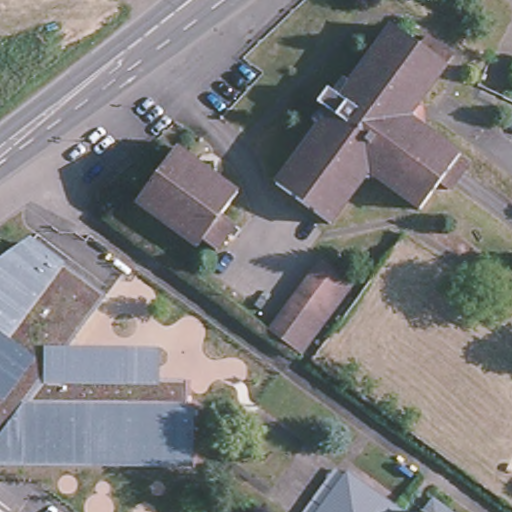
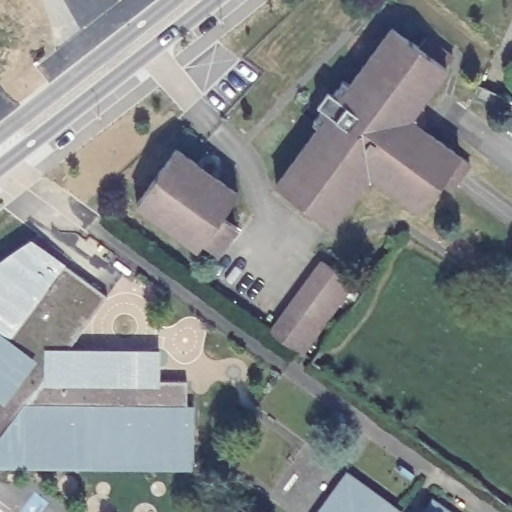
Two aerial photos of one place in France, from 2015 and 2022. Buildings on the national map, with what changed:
unchanged [(469,169),(449,197),(439,190),(420,216),(412,211),(378,185),(362,187),(330,231),(276,191),(319,132),(313,127),(344,86),(350,91),(392,33),(419,53),(426,44),(453,64),(415,115),(417,132),(452,157),(460,162),(469,169)]
unchanged [(480,96),(483,87),(489,89),(488,92),(494,94),(498,96),(495,102),(490,100),(480,96)]
unchanged [(177,149),(239,195),(223,217),(236,227),(217,252),(204,242),(199,249),(137,203),(177,149)]
unchanged [(31,242),(103,296),(100,301),(72,343),(156,345),(160,381),(186,382),(185,405),(192,403),(192,412),(195,470),(0,469),(0,263),(31,242)]
unchanged [(284,322),(279,318),(322,262),(353,285),(301,356),(274,335),(284,322)]
unchanged [(402,512),(320,512),(349,473),(402,512)]

